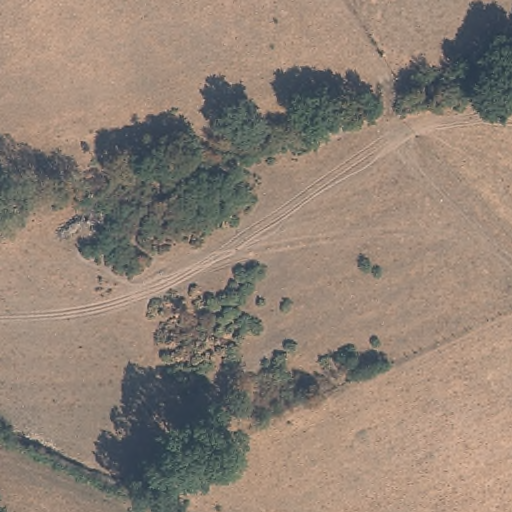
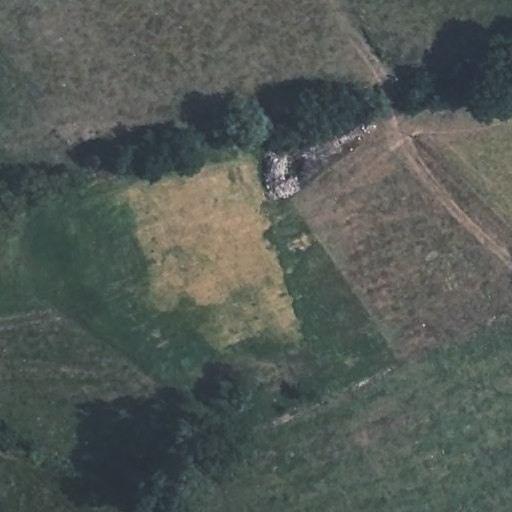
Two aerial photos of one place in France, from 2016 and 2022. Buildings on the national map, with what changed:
[]

